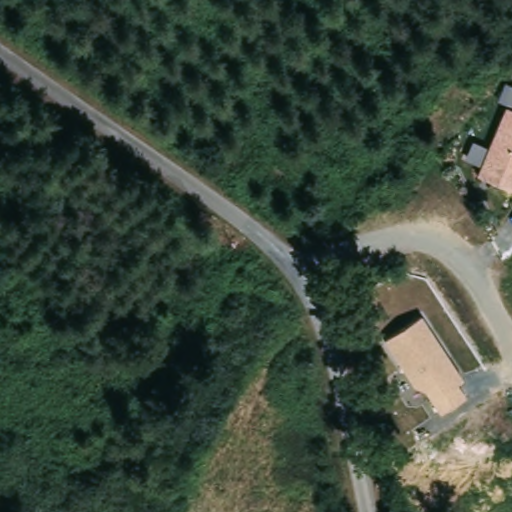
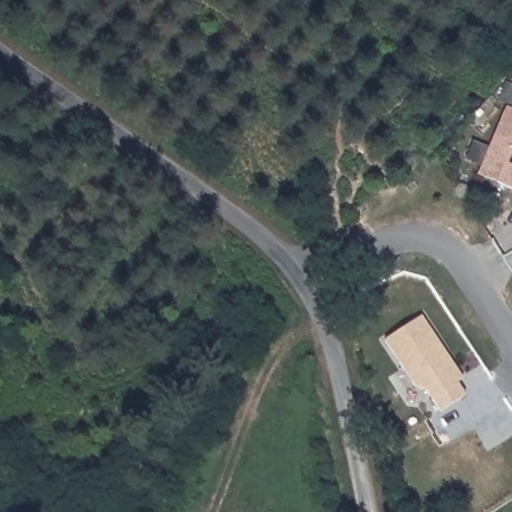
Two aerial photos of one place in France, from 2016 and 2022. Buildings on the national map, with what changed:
unchanged [(512,189),(476,174),(504,106),(512,109),(512,189)]
unchanged [(439,412),(424,390),(414,387),(386,341),(421,316),(463,380),(458,385),(465,395),(439,412)]

